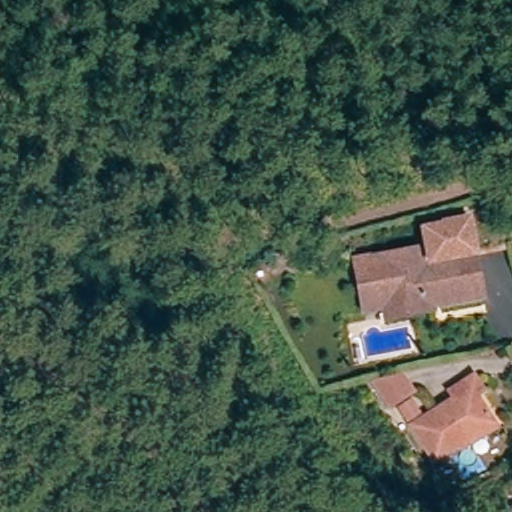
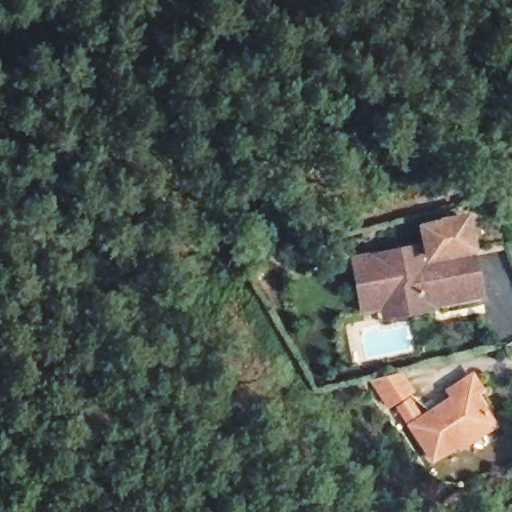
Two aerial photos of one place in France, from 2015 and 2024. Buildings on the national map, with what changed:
unchanged [(443,307),(399,317),(397,307),(377,312),(372,292),(365,263),(437,246),(433,228),(452,224),(452,222),(475,216),(482,246),(512,239),(512,244),(483,251),(489,273),(484,274),(489,292),(453,300),(442,302),(443,307)]
unchanged [(419,400),(393,413),(380,387),(408,379),(419,400)]
unchanged [(470,459),(463,449),(437,466),(415,430),(459,402),(456,398),(480,383),(487,395),(481,398),(499,426),(505,437),(470,459)]

